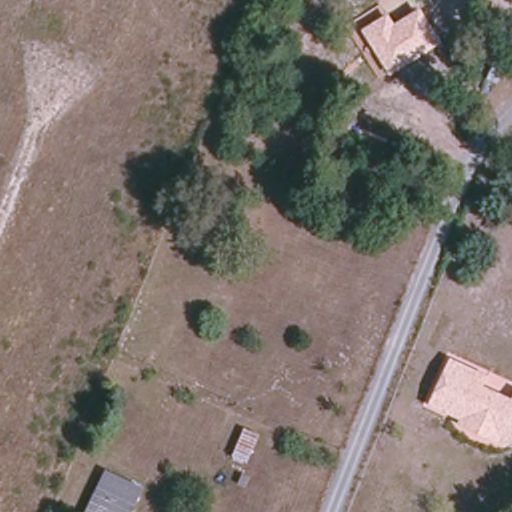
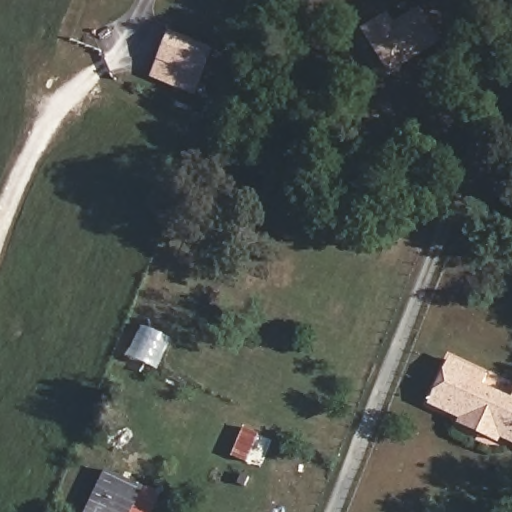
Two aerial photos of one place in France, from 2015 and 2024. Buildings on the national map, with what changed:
unchanged [(443,45),(391,77),(362,29),(390,13),(395,23),(420,9),(443,45)]
new [(214,49),(194,95),(149,78),(168,30),(214,49)]
unchanged [(458,421),(460,415),(428,399),(448,358),(484,376),(480,385),(512,401),(512,441),(496,433),(493,439),(484,434),(458,421)]
unchanged [(248,464),(233,456),(244,429),(261,436),(248,464)]
unchanged [(130,512),(91,512),(109,473),(141,487),(130,512)]

